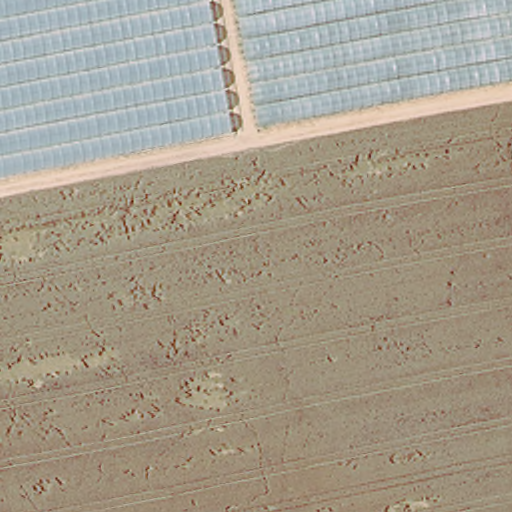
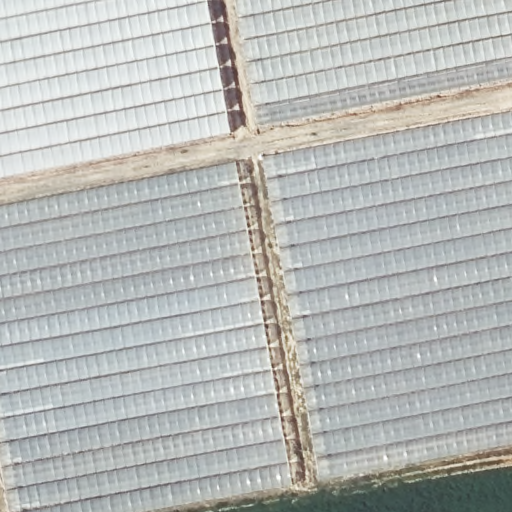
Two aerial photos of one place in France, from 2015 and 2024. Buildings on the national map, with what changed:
demolished [(217,0),(237,122),(0,168),(0,0),(217,0)]
new [(124,155),(0,178),(0,0),(207,0),(231,133),(124,155)]
new [(257,127),(247,77),(233,0),(512,0),(512,78),(388,100),(257,127)]
demolished [(243,0),(512,0),(512,72),(265,118),(243,0)]
demolished [(271,146),(512,103),(512,471),(330,501),(271,146)]
new [(512,111),(512,444),(437,458),(382,470),(319,480),(262,156),(339,141),(512,111)]
demolished [(0,381),(0,198),(241,151),(299,499),(301,512),(23,512),(0,381)]
new [(236,161),(263,309),(293,485),(169,506),(140,512),(9,512),(0,465),(0,205),(236,161)]
demolished [(512,486),(512,512),(369,512),(512,486)]

